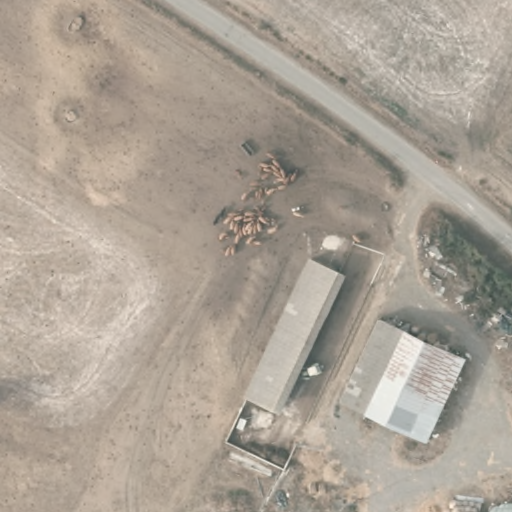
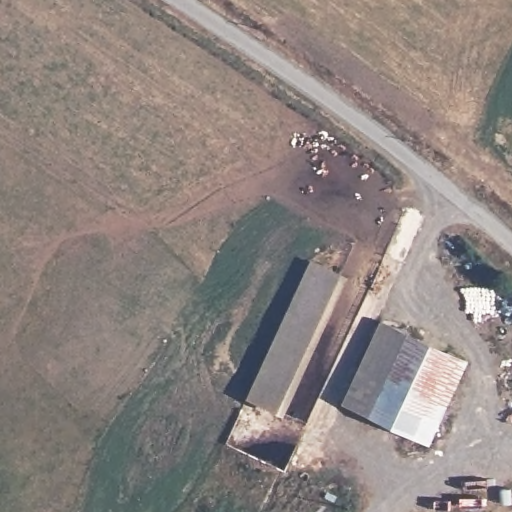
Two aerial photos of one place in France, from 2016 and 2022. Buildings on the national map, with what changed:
unchanged [(238,390),(321,265),(350,284),(267,409),(238,390)]
unchanged [(350,396),(401,320),(462,361),(412,437),(350,396)]

